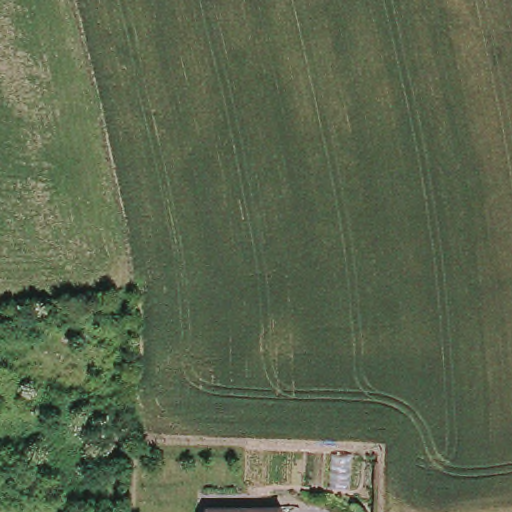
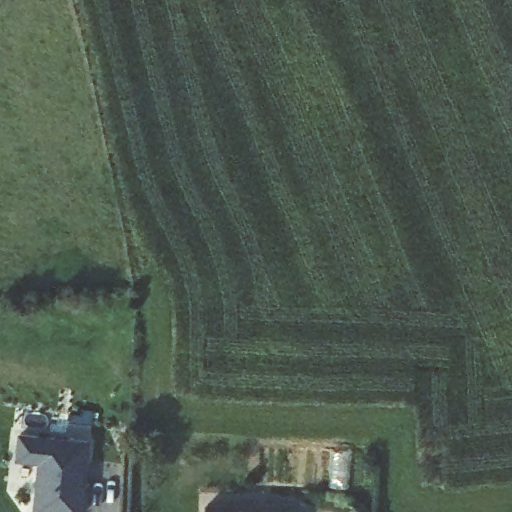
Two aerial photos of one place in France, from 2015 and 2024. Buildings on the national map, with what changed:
new [(15,464),(18,435),(91,444),(84,512),(35,512),(38,465),(15,464)]
unchanged [(207,512),(207,502),(279,497),(280,512),(207,512)]

